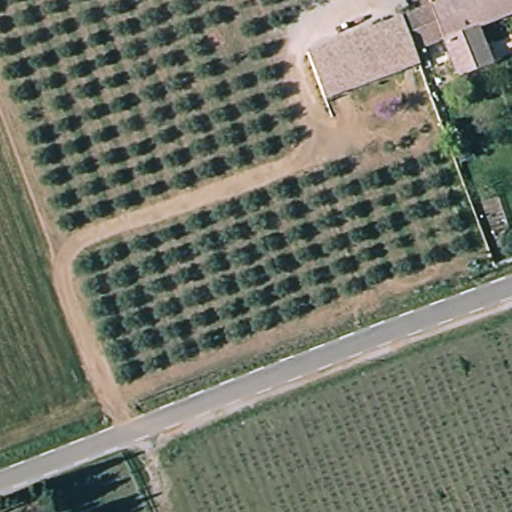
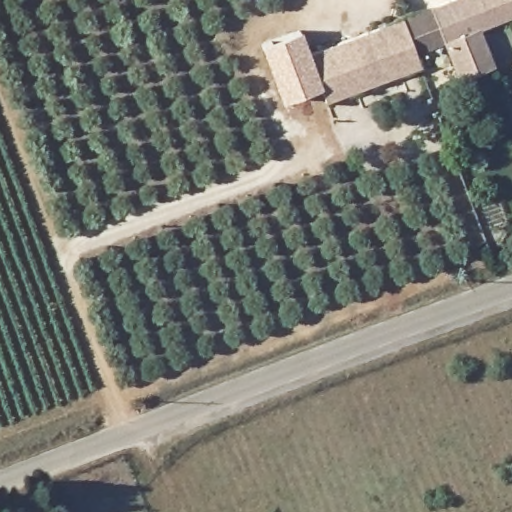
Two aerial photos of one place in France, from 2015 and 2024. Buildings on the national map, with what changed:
unchanged [(495,66),(461,80),(446,42),(432,7),(452,0),(512,0),(512,17),(480,29),(495,66)]
unchanged [(446,42),(416,53),(403,19),(432,7),(446,42)]
unchanged [(416,53),(421,65),(326,103),(307,56),(403,19),(416,53)]
new [(307,56),(320,88),(281,101),(260,45),(301,30),(310,55),(307,56)]

